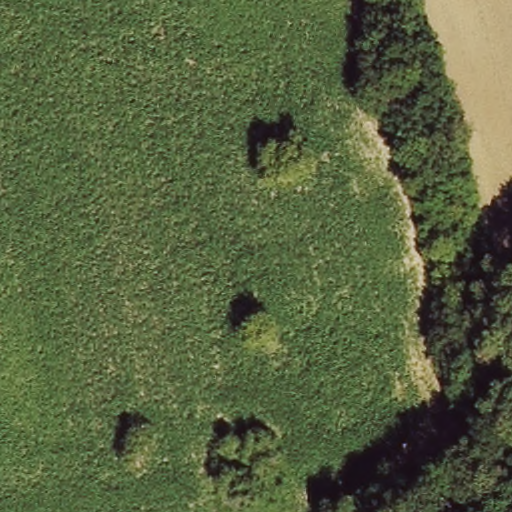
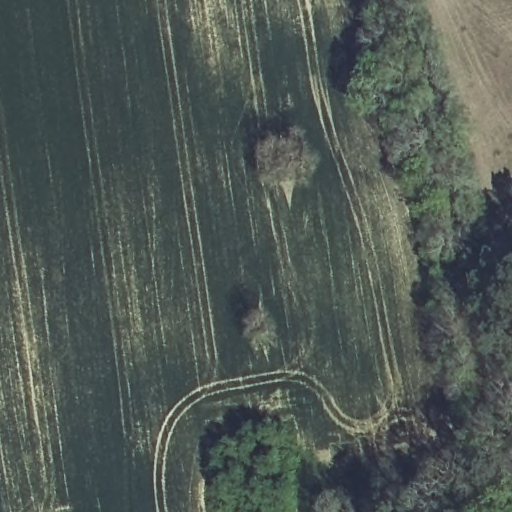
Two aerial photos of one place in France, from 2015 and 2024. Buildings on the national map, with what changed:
unchanged [(257,448),(226,453),(221,432),(251,426),(257,448)]

